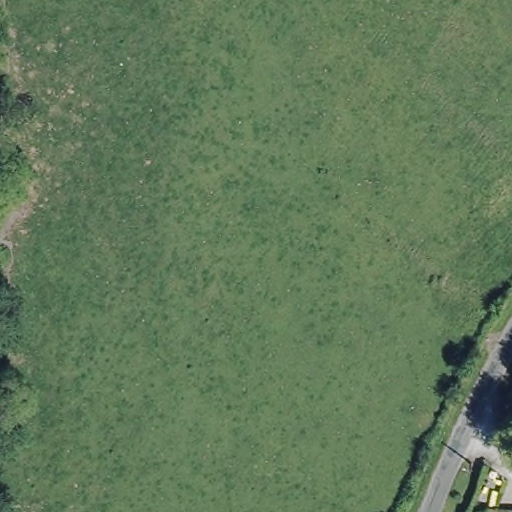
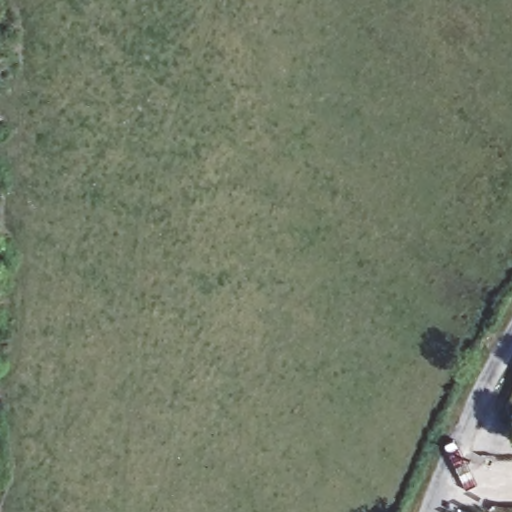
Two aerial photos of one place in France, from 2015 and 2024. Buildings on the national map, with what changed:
[]

